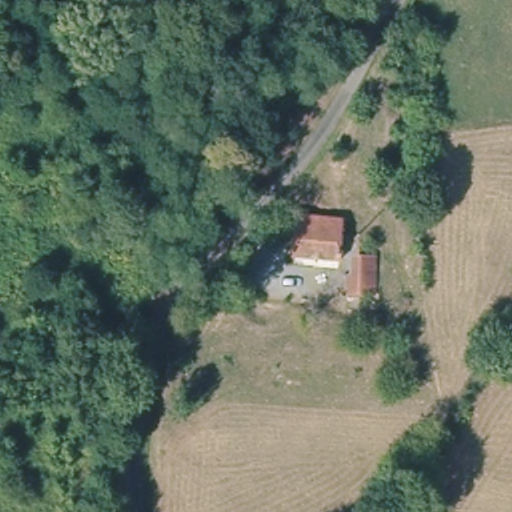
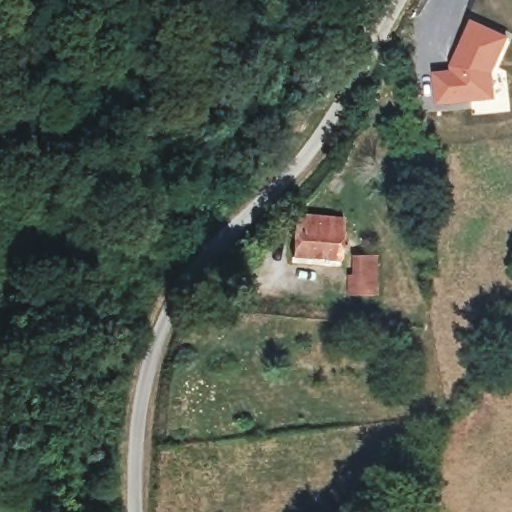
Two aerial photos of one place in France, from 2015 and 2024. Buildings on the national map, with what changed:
new [(449,69),(451,59),(470,18),(510,36),(494,74),(495,99),(435,104),(432,71),(449,69)]
unchanged [(341,218),(341,237),(340,259),(295,258),(294,216),(341,218)]
unchanged [(353,277),(360,277),(361,254),(373,253),(374,294),(352,295),(353,277)]

